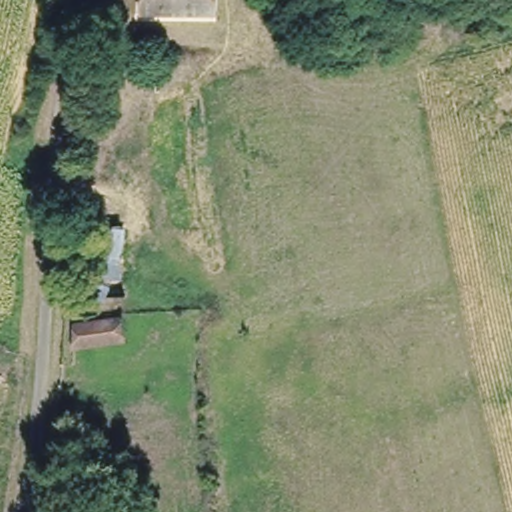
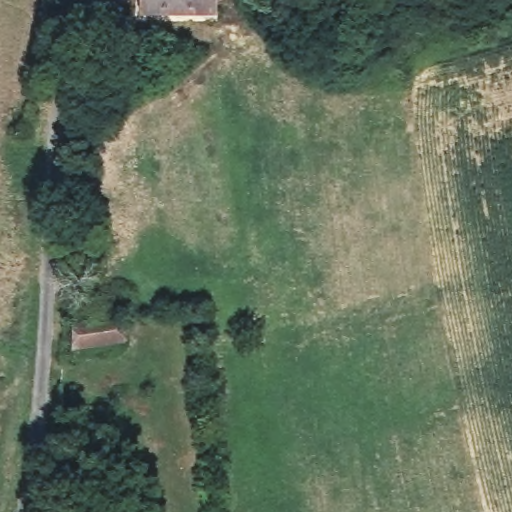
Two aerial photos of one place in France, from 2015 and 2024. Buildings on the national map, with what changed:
unchanged [(213,12),(140,14),(140,0),(213,0),(213,12)]
unchanged [(70,323),(119,312),(124,338),(72,348),(70,323)]

